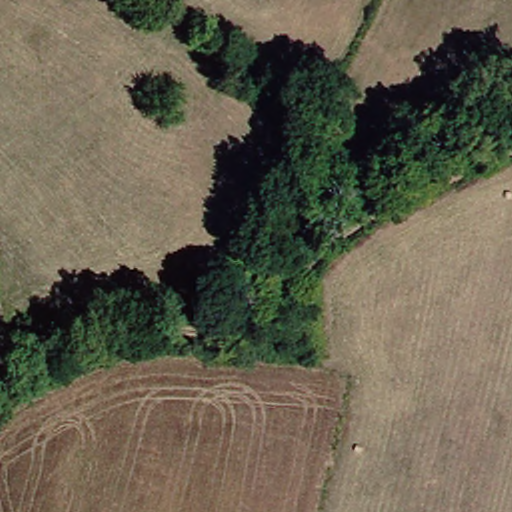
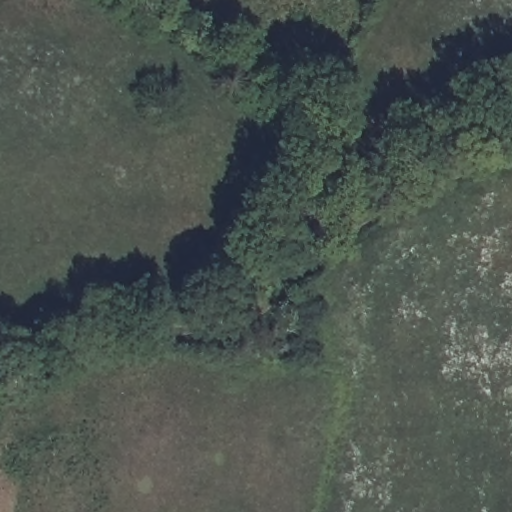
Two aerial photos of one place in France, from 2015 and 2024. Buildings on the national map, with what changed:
unchanged [(0,362),(0,336),(11,357),(0,362)]

